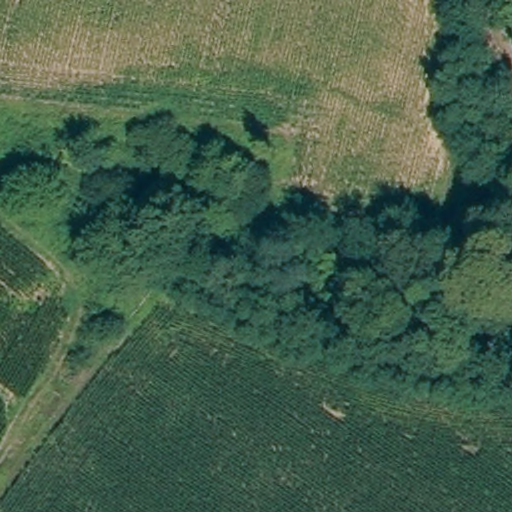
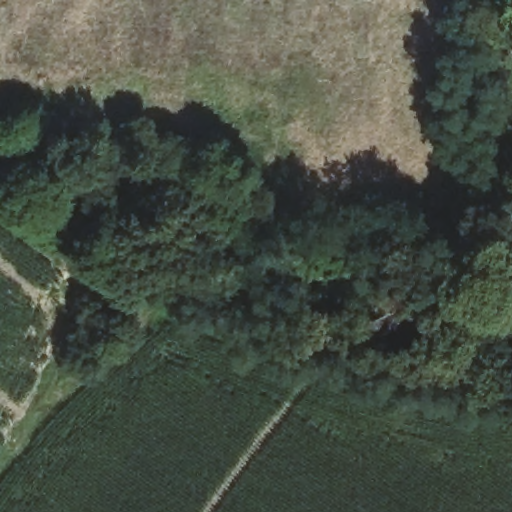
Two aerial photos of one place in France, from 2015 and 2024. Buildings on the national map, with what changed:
[]

